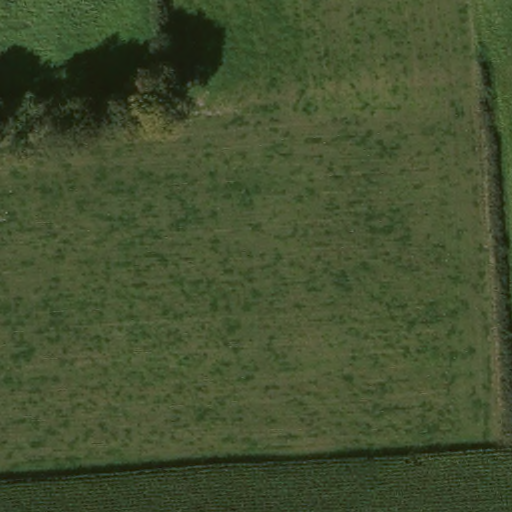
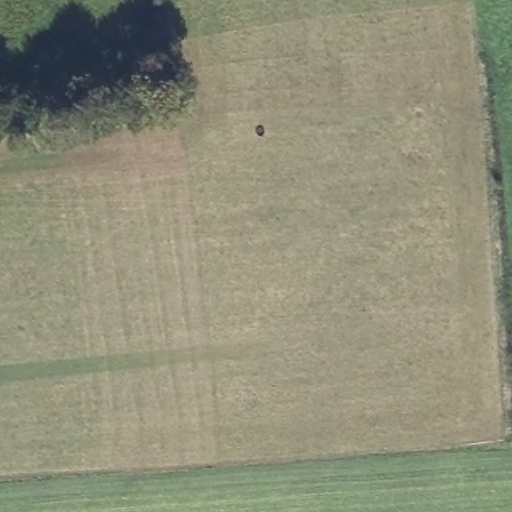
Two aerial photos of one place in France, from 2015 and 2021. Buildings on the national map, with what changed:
[]

